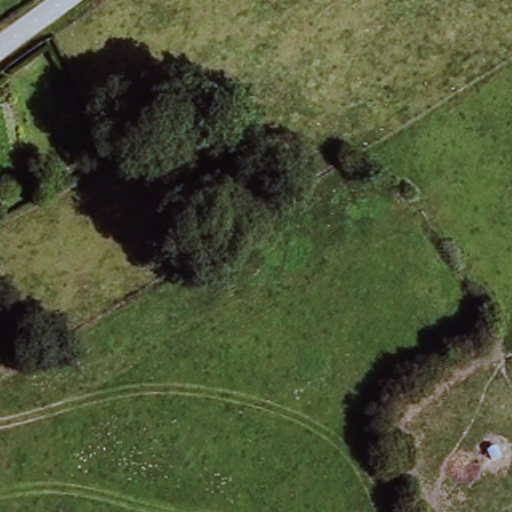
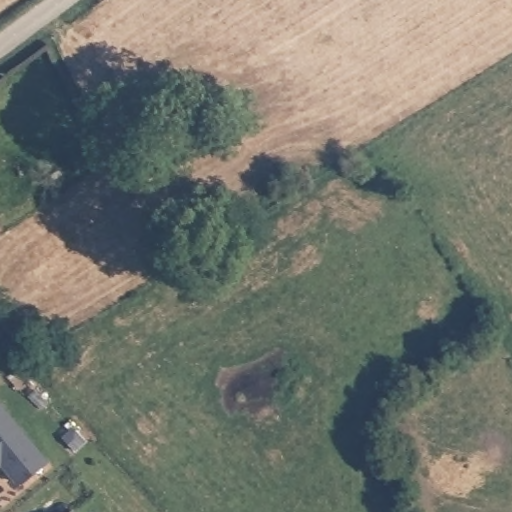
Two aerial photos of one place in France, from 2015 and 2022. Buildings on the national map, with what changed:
new [(47,465),(22,484),(16,484),(0,464),(0,405),(47,465)]
new [(73,511),(74,512),(72,512),(73,511)]

